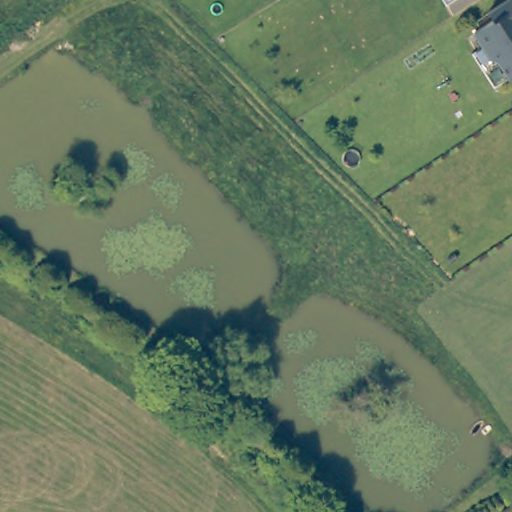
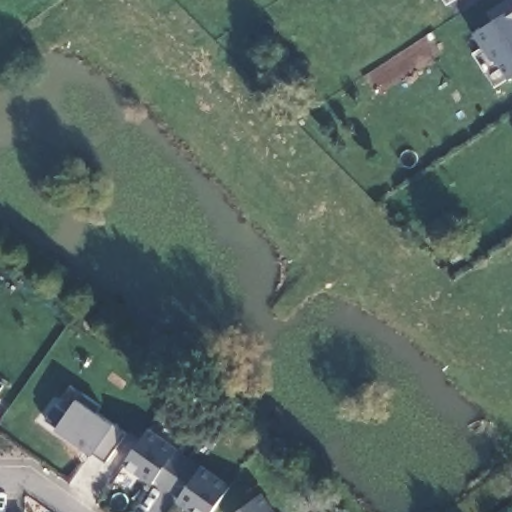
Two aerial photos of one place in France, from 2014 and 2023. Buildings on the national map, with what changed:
unchanged [(496,59),(478,32),(497,19),(492,12),(511,0),(512,0),(512,75),(503,61),(496,59)]
new [(2,385),(0,389),(0,384),(2,385)]
new [(66,413),(77,399),(113,425),(125,433),(105,463),(91,454),(57,428),(45,420),(56,405),(66,413)]
new [(154,480),(151,485),(123,465),(147,428),(200,466),(229,485),(212,512),(190,512),(176,502),(179,497),(154,480)]
new [(275,512),(234,512),(259,493),(275,512)]

